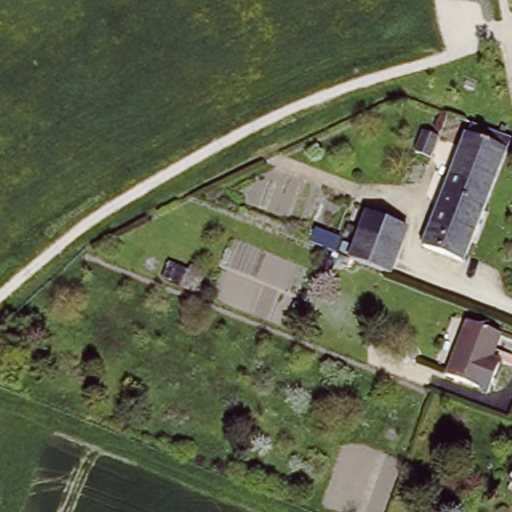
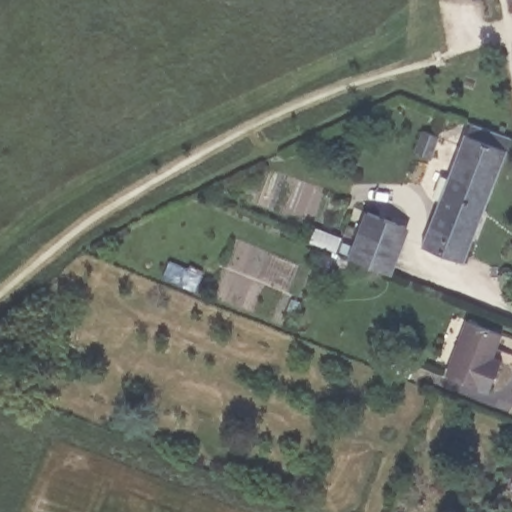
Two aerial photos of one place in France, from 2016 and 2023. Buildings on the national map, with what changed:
unchanged [(458,138),(460,139),(465,128),(505,142),(457,267),(415,251),(458,138)]
unchanged [(421,132),(430,135),(431,130),(440,134),(430,159),(414,153),(421,132)]
unchanged [(387,274),(349,259),(367,213),(405,227),(387,274)]
unchanged [(494,373),(485,394),(444,377),(466,323),(498,336),(488,360),(497,364),(494,373)]
unchanged [(512,491),(509,489),(512,480),(512,491)]

